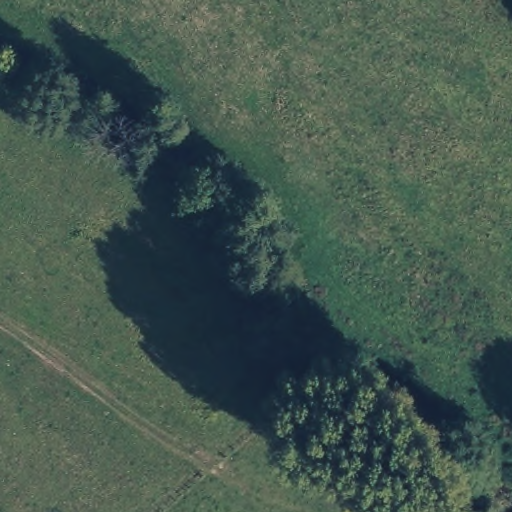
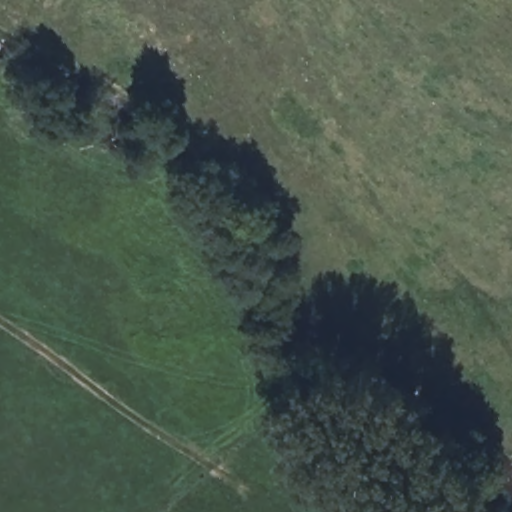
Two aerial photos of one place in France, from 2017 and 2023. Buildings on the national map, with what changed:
unchanged [(330,450),(325,456),(310,445),(330,423),(451,511),(450,512),(415,512),(330,450)]

